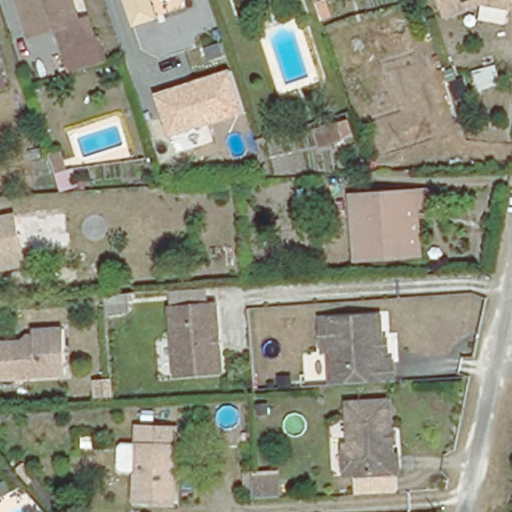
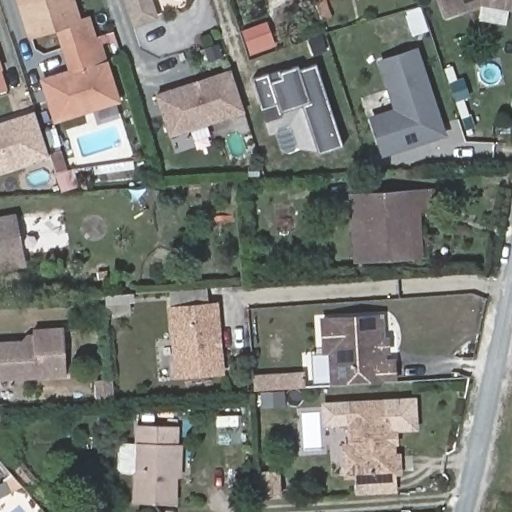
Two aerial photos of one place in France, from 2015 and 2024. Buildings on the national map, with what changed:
unchanged [(81,19),(87,16),(95,40),(100,38),(106,58),(73,69),(58,26),(32,35),(20,0),(74,0),(81,19)]
unchanged [(151,10),(131,17),(125,0),(148,0),(151,10)]
unchanged [(510,5),(480,1),(445,13),(441,0),(510,0),(510,5)]
new [(383,157),(370,116),(394,109),(379,61),(418,48),(446,136),(383,157)]
unchanged [(0,60),(0,49),(4,58),(0,60)]
new [(120,100),(58,120),(44,78),(106,58),(120,100)]
unchanged [(0,82),(0,60),(7,80),(0,82)]
new [(303,102),(281,109),(283,116),(267,121),(253,79),(267,73),(270,80),(281,77),(280,70),(297,65),(298,70),(316,65),(343,144),(319,152),(303,102)]
unchanged [(171,138),(156,94),(233,69),(247,112),(171,138)]
new [(0,168),(0,119),(36,107),(50,151),(0,168)]
unchanged [(63,196),(56,176),(50,156),(60,153),(68,173),(73,171),(80,190),(63,196)]
unchanged [(347,189),(360,188),(427,183),(428,200),(414,201),(417,248),(364,252),(351,253),(347,189)]
unchanged [(0,213),(21,209),(23,232),(25,250),(26,258),(0,263),(0,213)]
unchanged [(105,309),(104,292),(126,290),(128,308),(105,309)]
unchanged [(222,380),(179,384),(174,315),(173,298),(207,296),(208,313),(218,313),(222,380)]
unchanged [(392,386),(331,388),(329,355),(322,355),(321,323),(378,320),(379,345),(384,345),(385,356),(379,356),(379,367),(391,367),(392,386)]
unchanged [(64,374),(0,376),(0,341),(23,340),(24,335),(31,335),(31,329),(61,329),(64,374)]
new [(305,373),(305,384),(261,386),(260,375),(305,373)]
unchanged [(94,397),(93,381),(109,381),(110,397),(94,397)]
unchanged [(396,454),(397,472),(345,473),(343,445),(349,445),(347,402),(389,401),(391,431),(394,431),(394,441),(392,441),(391,454),(396,454)]
unchanged [(119,468),(119,441),(136,441),(136,425),(174,426),(174,502),(136,501),(136,468),(119,468)]
unchanged [(279,492),(254,493),(253,472),(277,471),(279,492)]

